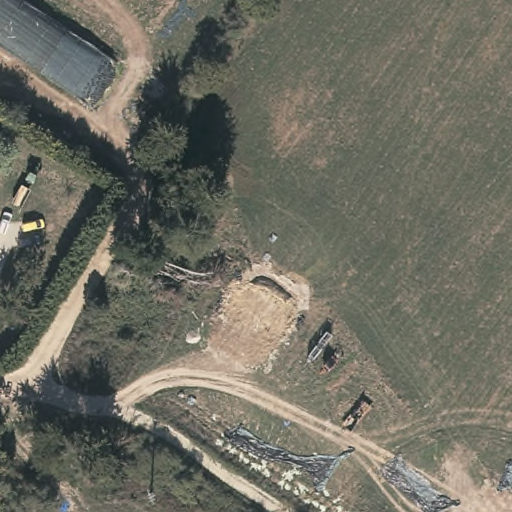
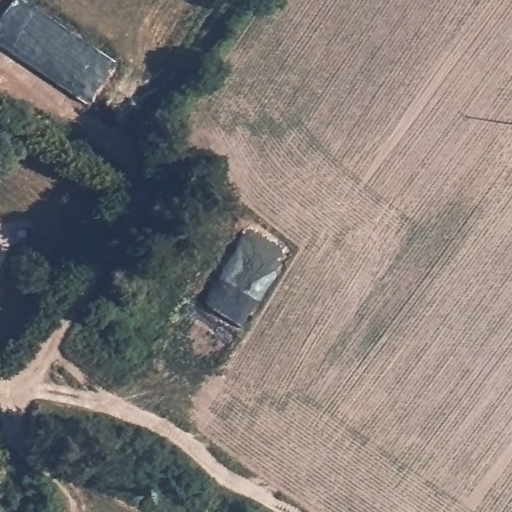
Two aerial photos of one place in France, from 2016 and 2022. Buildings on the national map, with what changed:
[]

